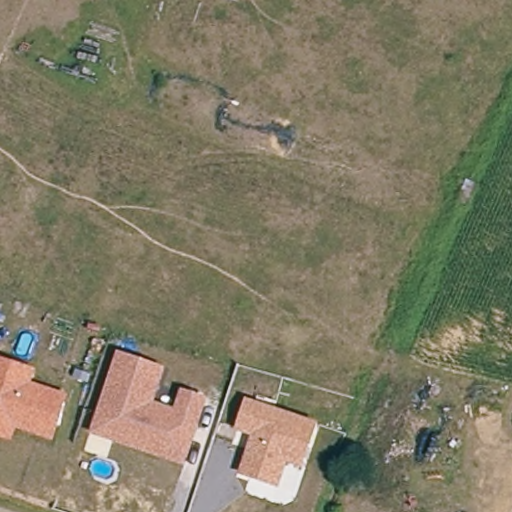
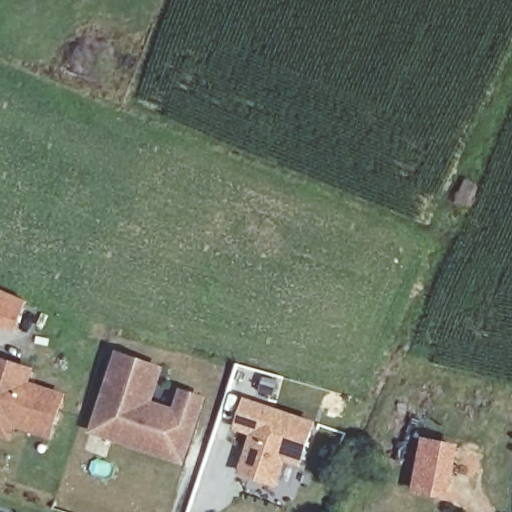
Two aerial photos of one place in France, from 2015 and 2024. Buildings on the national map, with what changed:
new [(0,328),(0,288),(27,299),(15,333),(0,328)]
unchanged [(166,367),(155,402),(173,408),(180,388),(206,396),(185,465),(89,433),(115,351),(166,367)]
unchanged [(30,381),(68,393),(54,441),(16,429),(13,442),(0,438),(0,357),(34,368),(30,381)]
unchanged [(316,426),(304,468),(286,462),(278,489),(241,475),(251,436),(239,433),(248,402),(316,426)]
new [(421,437),(459,445),(448,502),(409,493),(421,437)]

